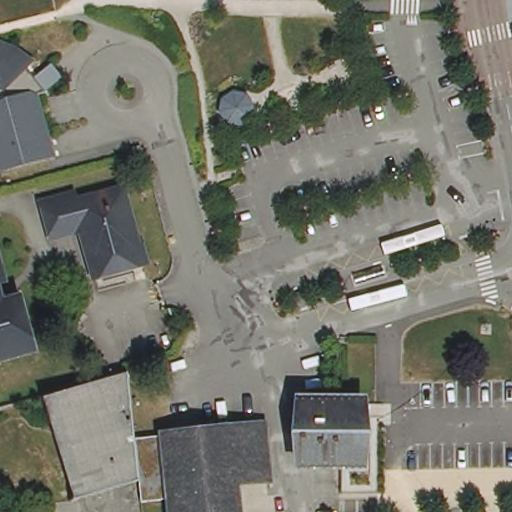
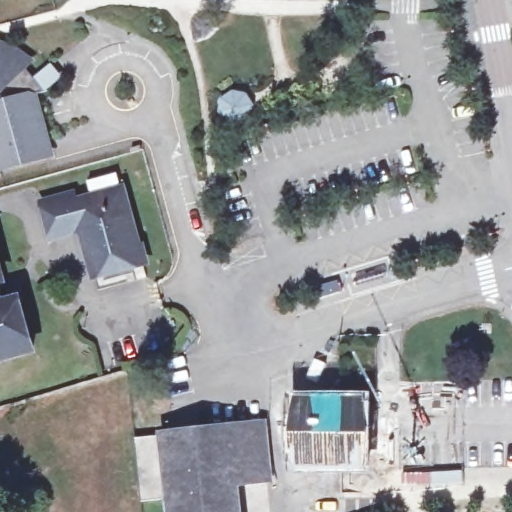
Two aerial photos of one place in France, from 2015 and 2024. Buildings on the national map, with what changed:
unchanged [(19,62),(29,74),(18,82),(13,84),(16,92),(26,89),(42,148),(0,160),(0,34),(10,46),(24,57),(19,62)]
unchanged [(44,63),(53,73),(38,85),(30,75),(44,63)]
unchanged [(75,183),(77,187),(123,176),(139,234),(129,238),(133,255),(95,265),(83,219),(53,227),(44,190),(75,183)]
unchanged [(3,241),(0,242),(0,232),(3,241)]
unchanged [(8,291),(24,287),(38,339),(3,348),(1,342),(0,343),(0,261),(8,291)]
unchanged [(378,261),(381,270),(352,279),(349,270),(378,261)]
demolished [(43,389),(128,364),(131,384),(136,431),(141,470),(73,491),(61,452),(55,430),(41,390),(43,389)]
unchanged [(343,395),(366,395),(364,460),(343,459),(302,459),(303,394),(343,395)]
unchanged [(141,470),(136,431),(177,425),(190,424),(262,416),(269,470),(244,473),(243,469),(233,470),(240,512),(174,512),(171,488),(143,491),(141,470)]

